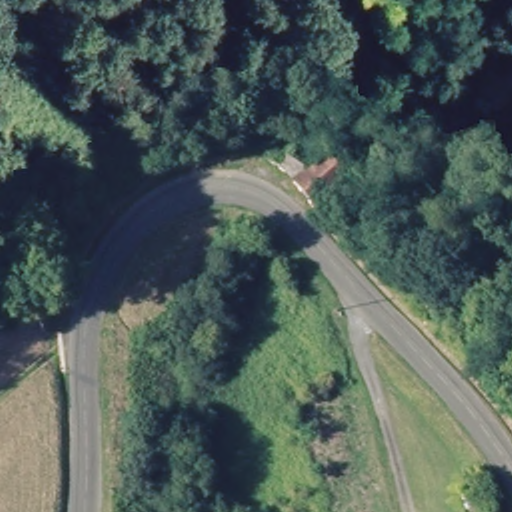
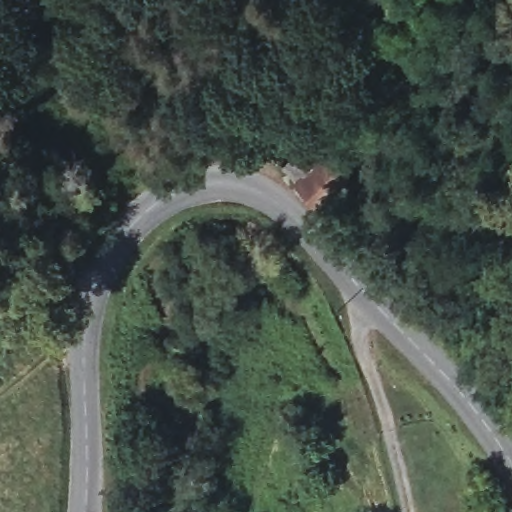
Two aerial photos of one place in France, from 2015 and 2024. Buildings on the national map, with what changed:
unchanged [(330,155),(332,158),(348,180),(311,206),(293,180),(330,155)]

